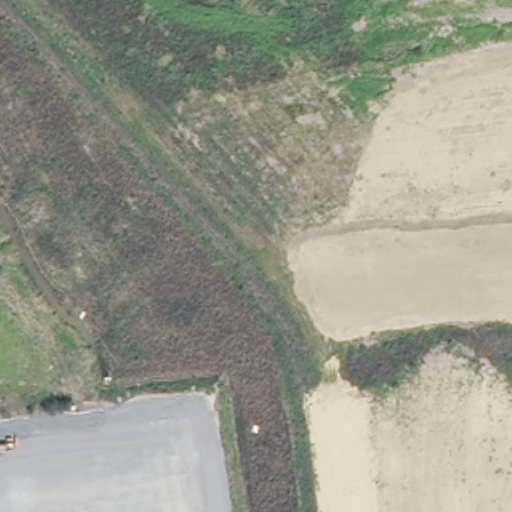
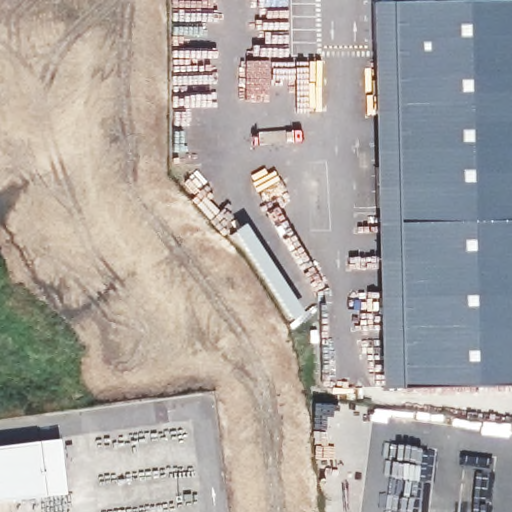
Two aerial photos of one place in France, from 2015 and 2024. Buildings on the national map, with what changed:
new [(382,387),(373,2),(392,2),(467,0),(512,0),(512,384),(402,385),(382,387)]
new [(302,312),(292,319),(234,230),(245,223),(302,312)]
new [(43,493),(0,498),(0,446),(37,441),(43,493)]

